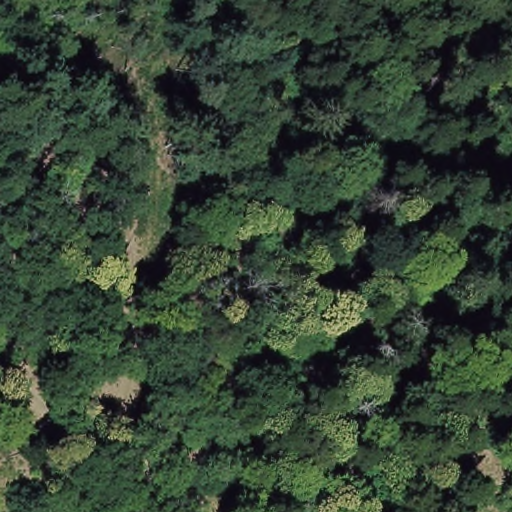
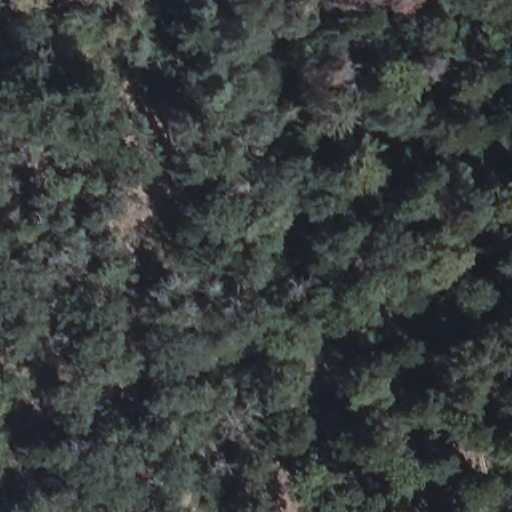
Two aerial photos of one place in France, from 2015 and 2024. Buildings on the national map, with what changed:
[]

